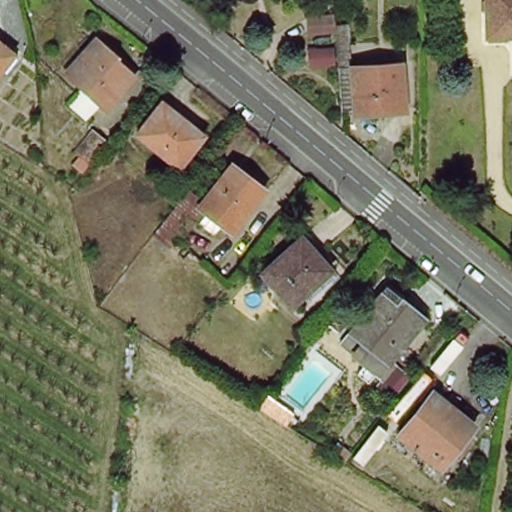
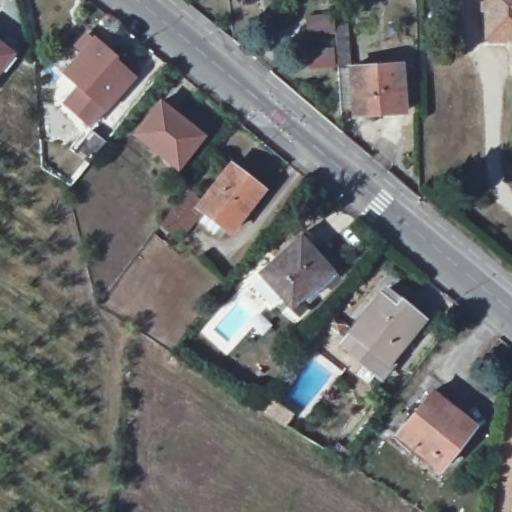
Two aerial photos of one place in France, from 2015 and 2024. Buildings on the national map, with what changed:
unchanged [(488,0),(512,0),(512,31),(490,31),(488,0)]
unchanged [(138,78),(111,108),(66,71),(92,41),(138,78)]
unchanged [(14,55),(0,75),(0,46),(14,55)]
unchanged [(406,59),(408,111),(348,116),(347,63),(406,59)]
unchanged [(204,123),(169,165),(139,140),(173,99),(204,123)]
unchanged [(61,175),(73,162),(77,156),(94,166),(78,186),(61,175)]
unchanged [(268,189),(233,230),(200,204),(234,164),(268,189)]
unchanged [(327,271),(297,302),(273,272),(302,242),(327,271)]
unchanged [(358,314),(386,280),(405,297),(412,290),(429,306),(395,347),(398,350),(387,363),(359,339),(346,328),(358,314)]
unchanged [(472,418),(442,454),(409,431),(440,391),(472,418)]

